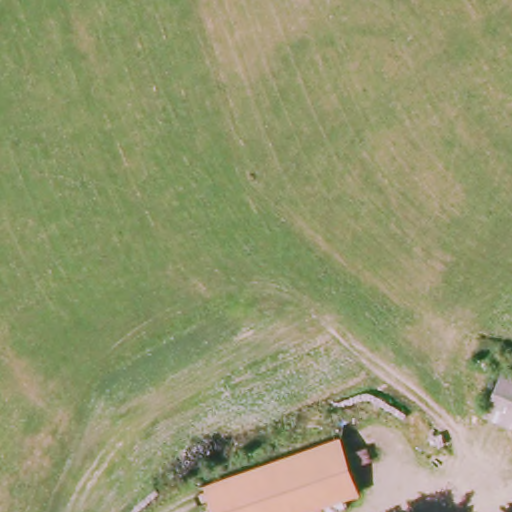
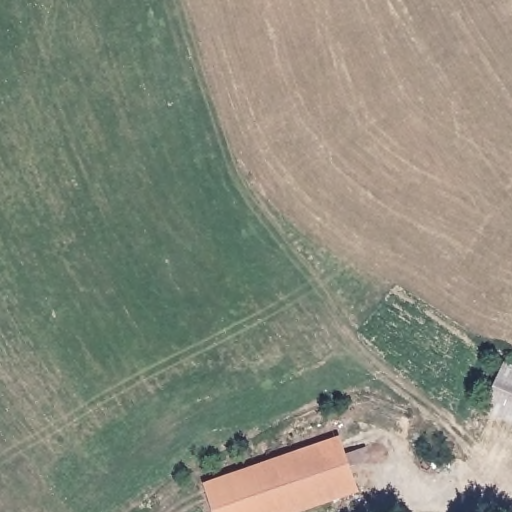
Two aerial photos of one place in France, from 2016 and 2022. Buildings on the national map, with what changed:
unchanged [(512,426),(483,412),(505,366),(512,369),(512,426)]
unchanged [(346,469),(366,461),(369,473),(350,482),(357,503),(332,512),(211,512),(207,502),(341,455),(346,469)]

